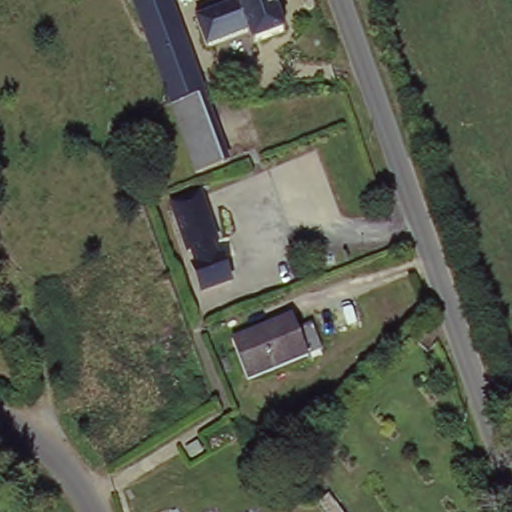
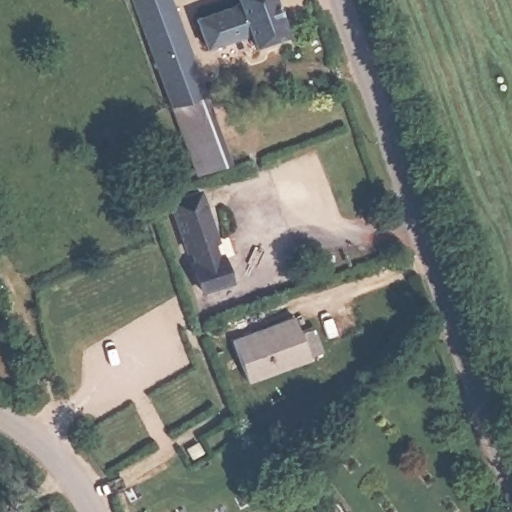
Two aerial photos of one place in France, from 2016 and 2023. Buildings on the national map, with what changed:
unchanged [(177,0),(209,87),(201,90),(185,96),(192,119),(180,124),(170,98),(137,0),(177,0)]
unchanged [(251,38),(246,26),(205,39),(198,13),(237,0),(276,0),(285,26),(251,38)]
unchanged [(180,124),(192,119),(185,96),(201,90),(224,154),(195,165),(180,124)]
unchanged [(234,280),(200,293),(170,202),(204,191),(234,280)]
unchanged [(295,321),(301,335),(315,329),(325,355),(252,386),(235,345),(295,321)]

